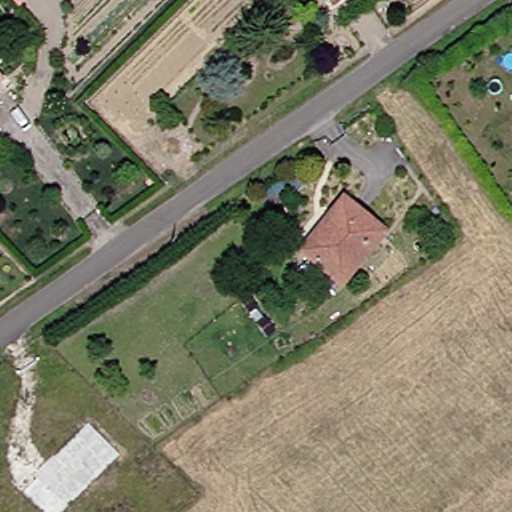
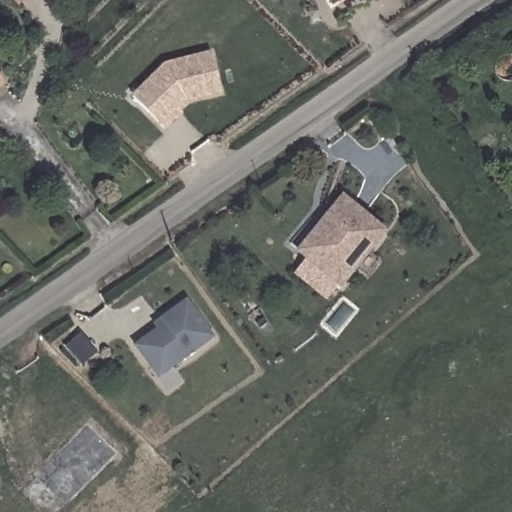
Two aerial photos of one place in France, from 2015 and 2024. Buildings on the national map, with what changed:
new [(150,115),(135,99),(168,67),(214,56),(223,95),(188,104),(179,113),(173,119),(163,128),(150,115)]
unchanged [(4,76),(0,80),(0,71),(4,76)]
unchanged [(305,253),(333,218),(326,213),(342,193),(383,226),(339,281),(305,253)]
new [(151,366),(138,347),(160,330),(157,326),(164,321),(190,301),(216,338),(173,369),(160,379),(151,366)]

